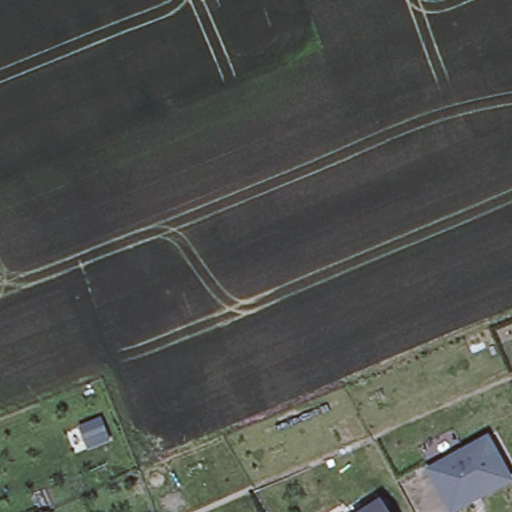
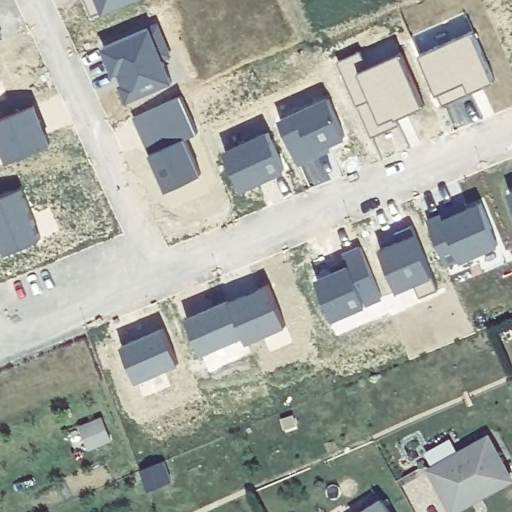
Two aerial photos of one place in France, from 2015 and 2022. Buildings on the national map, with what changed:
new [(99,13),(90,17),(83,0),(144,0),(100,17),(99,13)]
new [(158,26),(168,53),(159,58),(169,86),(122,107),(116,90),(120,87),(116,79),(110,81),(100,52),(158,26)]
new [(0,41),(0,34),(3,40),(0,41)]
new [(471,37),(492,86),(443,107),(438,96),(434,99),(419,58),(471,37)]
new [(360,53),(368,72),(398,59),(421,110),(396,122),(398,127),(371,139),(337,65),(360,53)]
new [(178,100),(194,137),(182,143),(198,179),(163,195),(133,120),(178,100)]
new [(326,102),(341,143),(314,154),(316,158),(297,167),(279,126),(326,102)]
new [(48,149),(4,166),(0,155),(0,123),(34,107),(48,149)]
new [(265,137),(281,177),(239,196),(223,157),(265,137)]
new [(36,243),(2,257),(0,251),(0,201),(20,192),(36,243)]
new [(512,194),(512,209),(508,196),(512,194)]
new [(439,216),(441,221),(478,207),(493,251),(457,266),(454,262),(443,268),(426,222),(439,216)]
new [(416,236),(437,291),(419,299),(415,287),(394,295),(377,252),(416,236)]
new [(347,270),(342,257),(359,248),(381,299),(331,323),(314,283),(347,270)]
new [(228,302),(229,305),(266,288),(283,330),(243,347),(241,341),(198,358),(184,322),(228,302)]
new [(161,332),(176,371),(133,387),(120,350),(161,332)]
new [(102,418),(111,443),(86,453),(79,428),(102,418)]
unchanged [(455,507),(432,466),(490,432),(512,472),(512,476),(483,492),(474,497),(455,507)]
new [(166,462),(173,482),(150,491),(143,472),(166,462)]
unchanged [(398,512),(351,512),(354,510),(384,490),(398,512)]

